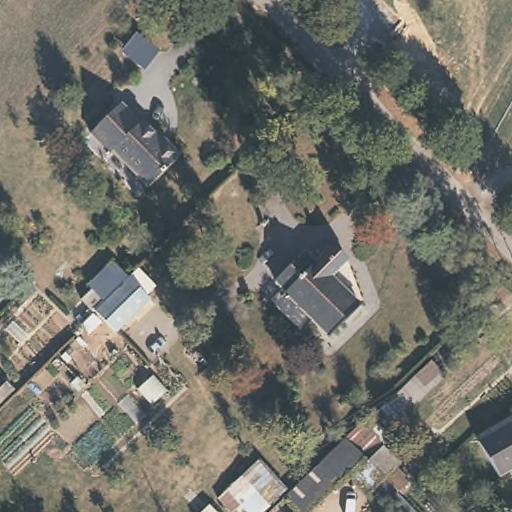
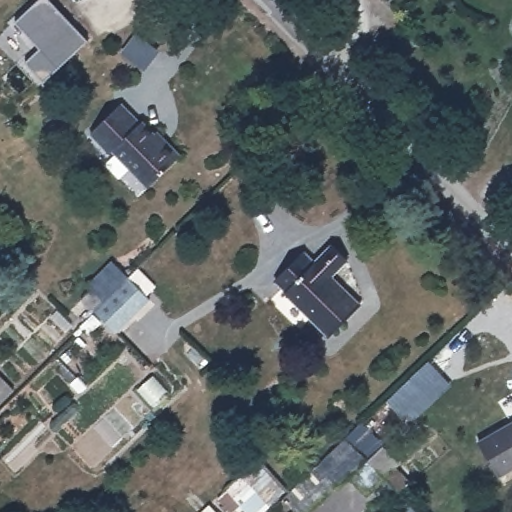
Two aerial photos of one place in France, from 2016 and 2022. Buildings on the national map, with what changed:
new [(43,82),(24,62),(39,48),(15,22),(38,0),(50,0),(88,40),(43,82)]
unchanged [(113,155),(109,158),(89,136),(119,106),(139,126),(141,123),(152,133),(156,129),(182,155),(176,160),(145,189),(113,155)]
unchanged [(304,250),(312,258),(330,241),(347,257),(331,274),(359,303),(328,334),(282,289),(286,286),(278,276),(304,250)]
unchanged [(139,264),(156,281),(147,291),(150,297),(115,328),(96,306),(139,264)]
unchanged [(338,491),(334,487),(308,512),(298,512),(285,498),(346,439),(425,359),(445,375),(383,440),(385,442),(382,445),(399,464),(394,468),(403,478),(394,488),(384,477),(367,491),(352,476),(338,491)]
unchanged [(512,420),(512,467),(498,474),(480,438),(512,420)]
unchanged [(253,455),(285,482),(258,512),(246,512),(220,484),(253,455)]

